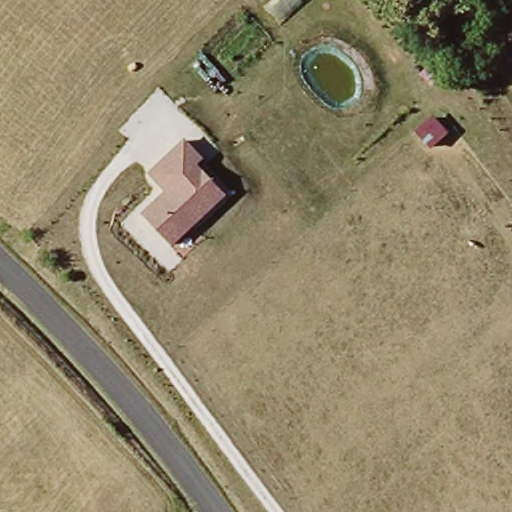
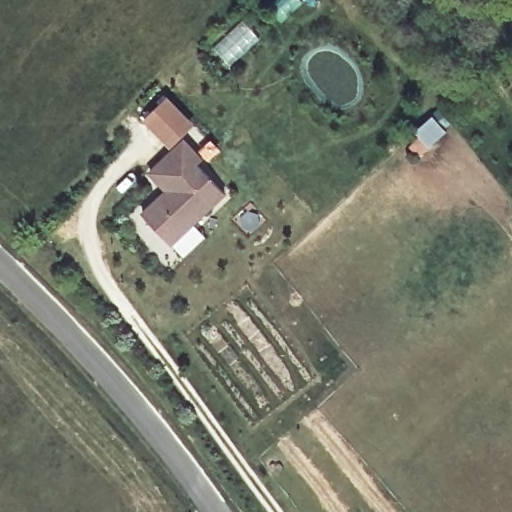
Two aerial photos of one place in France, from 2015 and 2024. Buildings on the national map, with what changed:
new [(195,124),(171,147),(143,120),(167,96),(195,124)]
unchanged [(143,215),(165,193),(147,175),(185,140),(203,159),(198,165),(226,196),(173,246),(143,215)]

